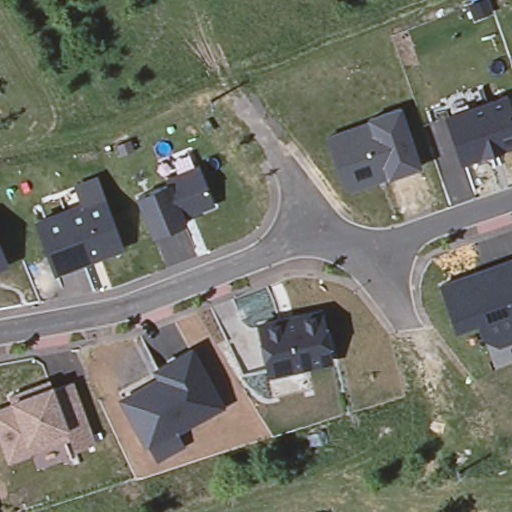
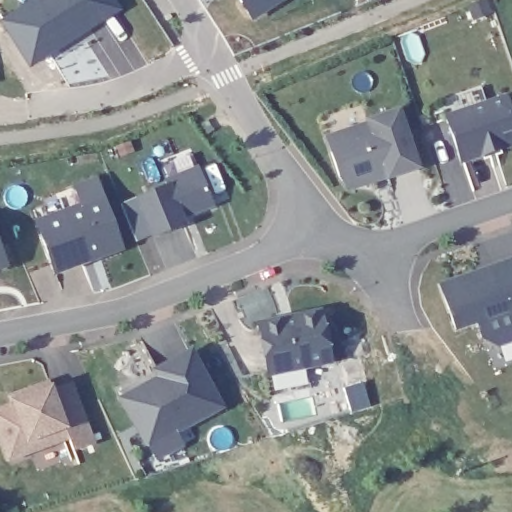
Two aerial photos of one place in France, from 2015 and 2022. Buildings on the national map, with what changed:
new [(2,23),(36,0),(111,0),(116,7),(85,28),(56,47),(30,65),(2,23)]
new [(274,0),(253,14),(244,0),(274,0)]
unchanged [(462,158),(448,115),(506,96),(512,115),(512,141),(462,158)]
unchanged [(390,176),(388,170),(376,173),(378,178),(351,187),(341,174),(328,135),(371,120),(370,116),(402,106),(422,165),(390,176)]
unchanged [(209,117),(215,127),(210,131),(203,121),(209,117)]
unchanged [(215,202),(183,215),(186,221),(155,234),(139,195),(169,183),(167,178),(200,165),(215,202)]
unchanged [(57,269),(38,219),(66,209),(59,190),(97,176),(104,195),(122,245),(57,269)]
unchanged [(7,263),(0,265),(0,247),(7,263)]
unchanged [(441,283),(478,271),(485,274),(493,272),(491,266),(511,259),(512,258),(512,337),(499,342),(483,335),(477,319),(456,327),(441,283)]
unchanged [(320,311),(330,359),(270,371),(261,323),(320,311)]
unchanged [(192,350),(221,405),(148,444),(118,389),(150,372),(192,350)]
unchanged [(49,380),(52,388),(71,381),(94,441),(74,448),(78,458),(72,461),(70,457),(38,469),(31,450),(9,458),(0,434),(0,407),(13,402),(10,394),(35,385),(49,380)]

